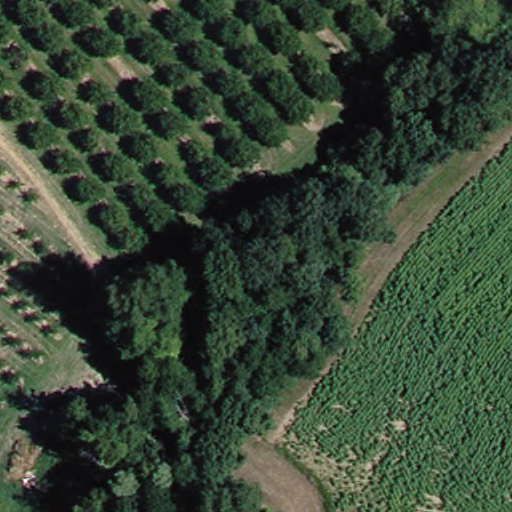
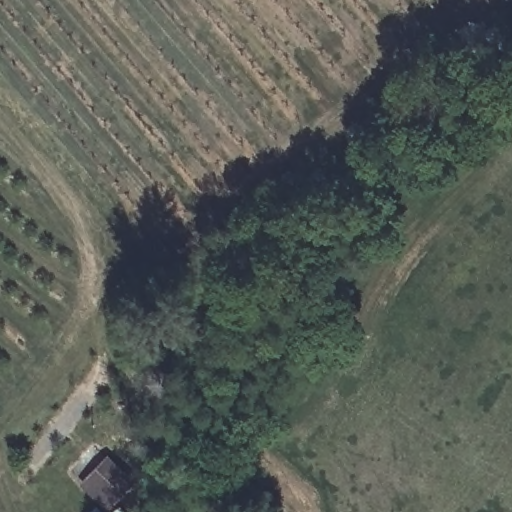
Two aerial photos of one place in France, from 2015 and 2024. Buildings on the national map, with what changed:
new [(80,485),(109,456),(137,483),(109,512),(107,512),(80,485)]

